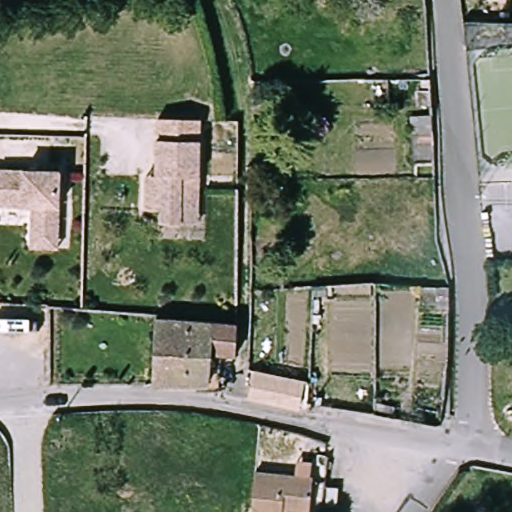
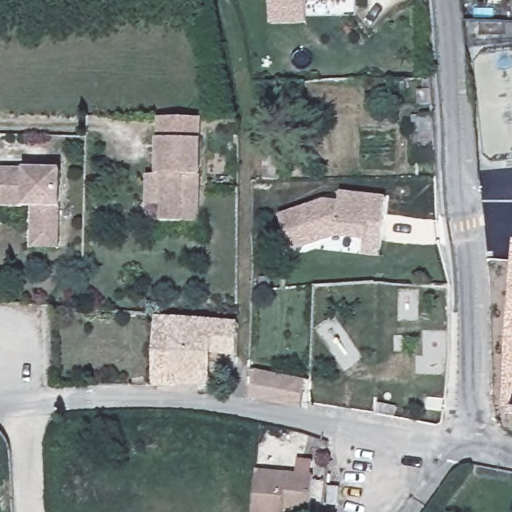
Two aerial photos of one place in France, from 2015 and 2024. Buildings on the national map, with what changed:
new [(348,0),(349,3),(306,3),(306,23),(270,23),(270,0),(348,0)]
unchanged [(203,142),(201,213),(184,213),(183,225),(163,225),(163,212),(148,212),(148,186),(149,178),(159,178),(160,141),(203,142)]
unchanged [(65,173),(65,249),(33,249),(36,210),(26,211),(26,207),(3,207),(3,219),(0,219),(0,170),(24,171),(65,173)]
new [(341,235),(296,250),(285,216),(330,200),(345,202),(346,192),(392,197),(390,214),(389,219),(387,240),(386,255),(368,253),(370,238),(341,235)]
new [(504,414),(512,281),(512,414),(504,414)]
unchanged [(156,318),(240,324),(240,357),(223,357),(220,394),(201,393),(201,386),(156,385),(156,318)]
unchanged [(253,394),(258,375),(304,385),(301,404),(253,394)]
unchanged [(256,483),(257,468),(298,472),(299,459),(313,460),(311,473),(315,473),(312,512),(295,512),(290,512),(289,512),(253,512),(256,483)]

